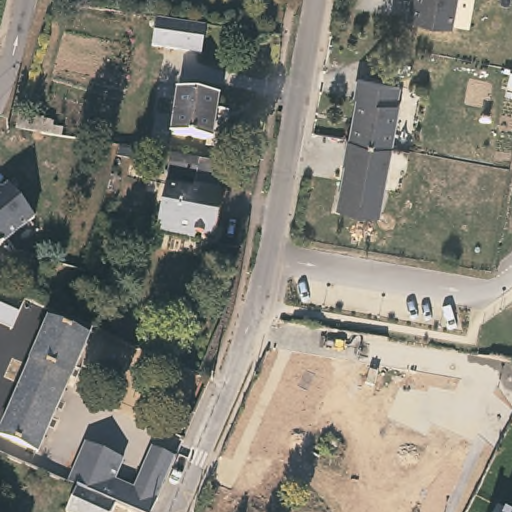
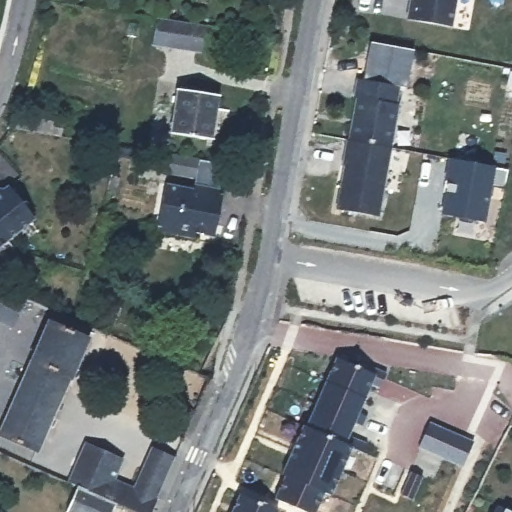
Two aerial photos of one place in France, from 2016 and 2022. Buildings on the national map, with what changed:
unchanged [(448,25),(404,17),(407,0),(453,0),(448,25)]
unchanged [(207,22),(202,50),(152,42),(155,15),(207,22)]
unchanged [(351,137),(360,96),(357,96),(360,77),(401,85),(398,102),(401,102),(393,145),(351,137)]
unchanged [(223,89),(217,135),(176,129),(184,82),(223,89)]
unchanged [(49,117),(48,132),(12,127),(16,112),(49,117)]
unchanged [(393,146),(380,214),(338,206),(347,157),(346,157),(350,137),(351,137),(393,145),(393,146)]
unchanged [(195,155),(191,174),(166,170),(170,151),(195,155)]
new [(450,157),(497,166),(510,169),(506,190),(491,187),(485,222),(441,214),(450,157)]
unchanged [(0,239),(0,186),(9,178),(35,210),(0,239)]
unchanged [(221,182),(220,189),(225,190),(219,231),(198,227),(197,232),(164,229),(165,222),(160,221),(167,180),(196,185),(197,180),(221,182)]
unchanged [(16,327),(0,320),(0,286),(25,296),(16,327)]
unchanged [(86,326),(88,326),(35,448),(0,432),(0,428),(49,310),(60,314),(86,326)]
unchanged [(375,375),(355,422),(316,404),(335,357),(375,375)]
demolished [(213,380),(198,417),(188,412),(198,388),(195,387),(199,373),(213,380)]
new [(347,442),(353,445),(333,497),(325,493),(316,512),(306,512),(275,500),(285,477),(281,476),(305,425),(307,426),(316,404),(355,422),(347,442)]
new [(430,422),(475,440),(463,468),(418,450),(430,422)]
unchanged [(79,485),(65,479),(81,443),(119,459),(111,477),(134,487),(126,506),(115,501),(110,512),(78,512),(69,508),(79,485)]
unchanged [(165,487),(153,512),(141,512),(126,506),(134,487),(152,447),(177,458),(165,487)]
unchanged [(277,512),(233,512),(240,495),(277,512)]
unchanged [(510,512),(494,512),(497,506),(510,512)]

